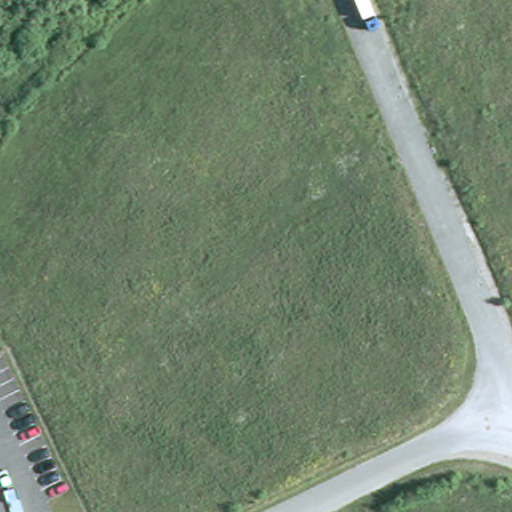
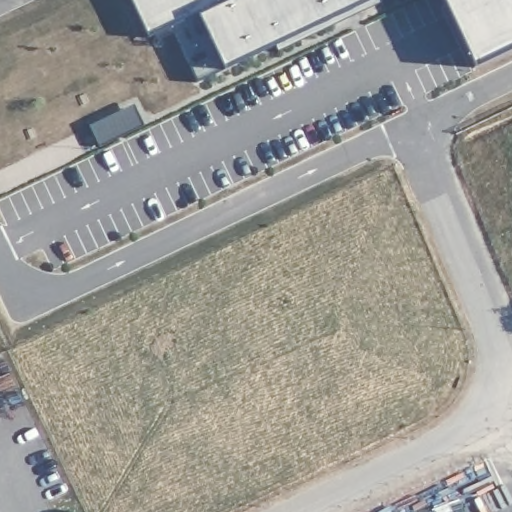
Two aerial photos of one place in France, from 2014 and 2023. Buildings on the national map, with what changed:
new [(220,61),(194,79),(168,27),(148,36),(131,0),(368,0),(271,47),(224,69),(220,61)]
new [(354,0),(368,0),(271,47),(268,41),(354,0)]
new [(512,50),(475,67),(443,0),(512,0),(512,50)]
new [(133,100),(145,122),(108,140),(100,145),(88,123),(97,119),(133,100)]

